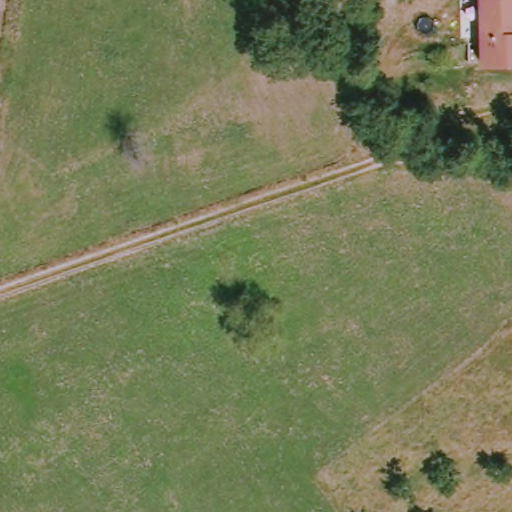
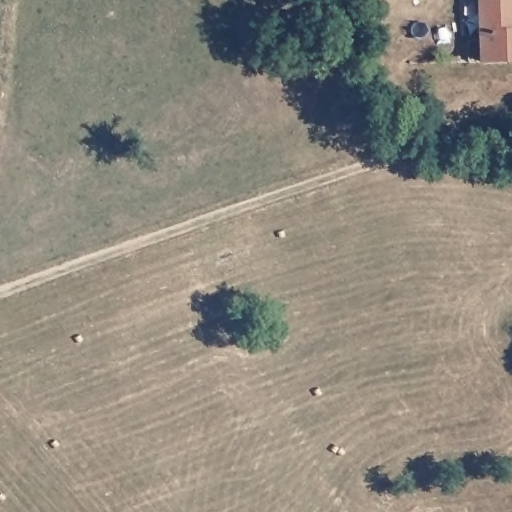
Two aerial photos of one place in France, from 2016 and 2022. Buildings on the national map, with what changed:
unchanged [(480,0),(512,0),(512,63),(480,62),(480,0)]

